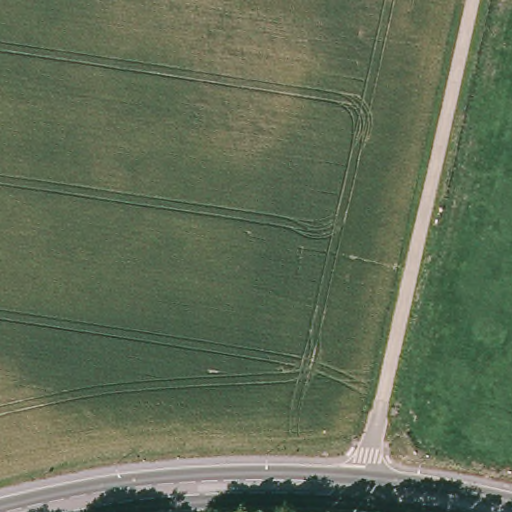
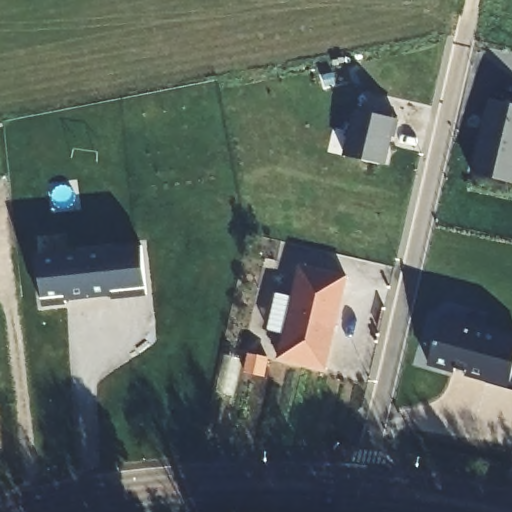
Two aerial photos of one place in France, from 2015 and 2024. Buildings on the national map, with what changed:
new [(512,182),(473,174),(489,98),(512,103),(512,182)]
new [(397,119),(393,137),(389,136),(384,163),(346,155),(355,109),(397,119)]
new [(112,297),(111,294),(65,299),(66,302),(43,305),(38,257),(141,246),(146,294),(112,297)]
new [(348,275),(326,370),(276,360),(299,263),(348,275)]
new [(512,388),(428,365),(442,316),(512,335),(512,388)]

